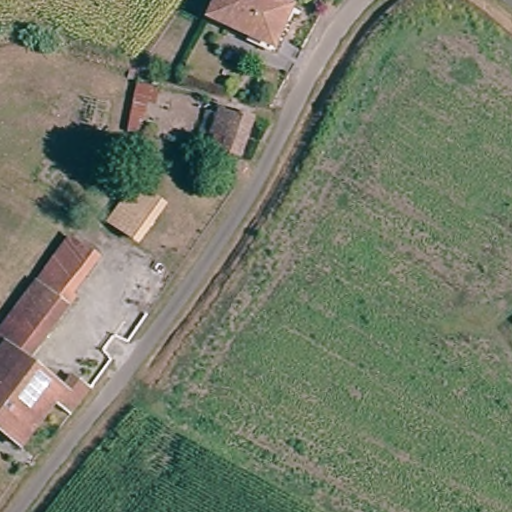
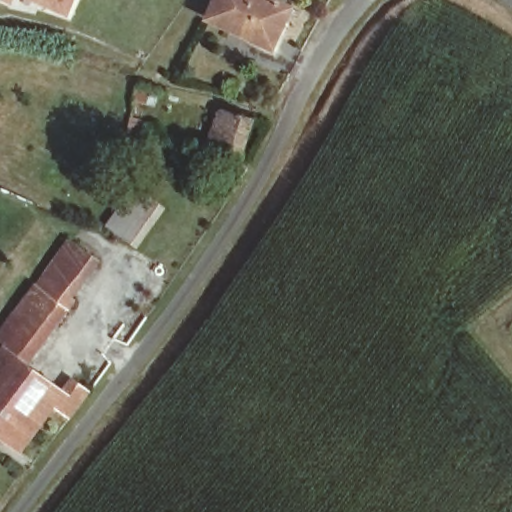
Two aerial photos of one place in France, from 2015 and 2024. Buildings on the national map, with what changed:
new [(12,4),(2,0),(14,0),(12,4)]
new [(70,19),(27,0),(77,0),(70,19)]
unchanged [(273,49),(209,20),(218,0),(274,0),(292,9),(273,49)]
unchanged [(240,160),(206,148),(220,108),(254,120),(240,160)]
unchanged [(139,188),(164,206),(138,242),(113,225),(139,188)]
unchanged [(49,277),(75,241),(97,257),(69,292),(49,277)]
unchanged [(69,292),(80,301),(32,365),(70,390),(77,381),(95,393),(75,418),(60,407),(26,452),(0,432),(0,339),(49,277),(69,292)]

